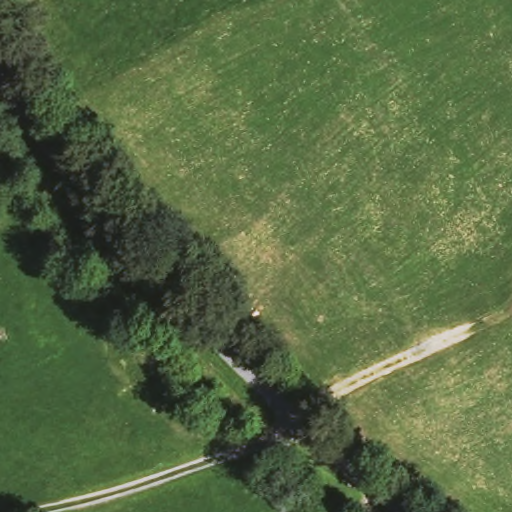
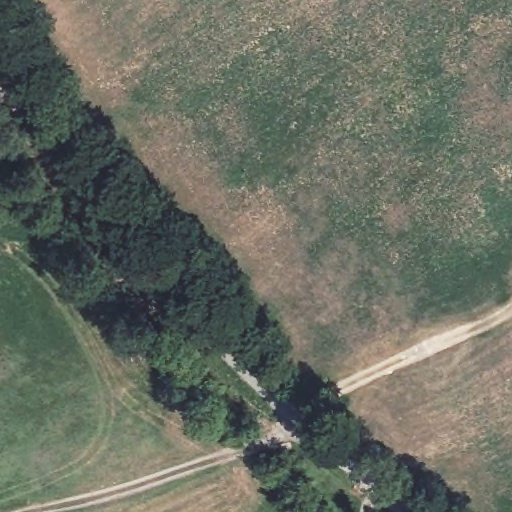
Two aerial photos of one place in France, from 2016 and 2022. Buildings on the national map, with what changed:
[]

